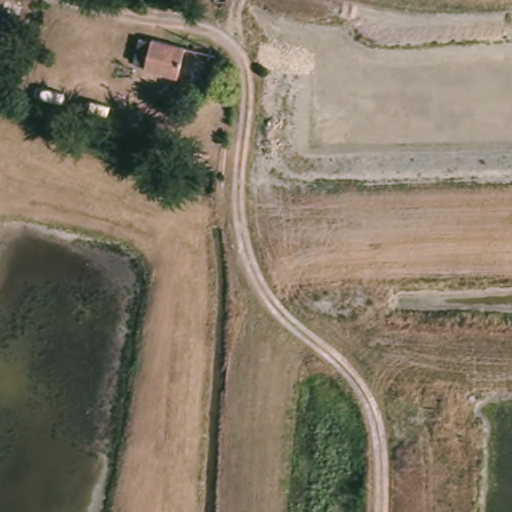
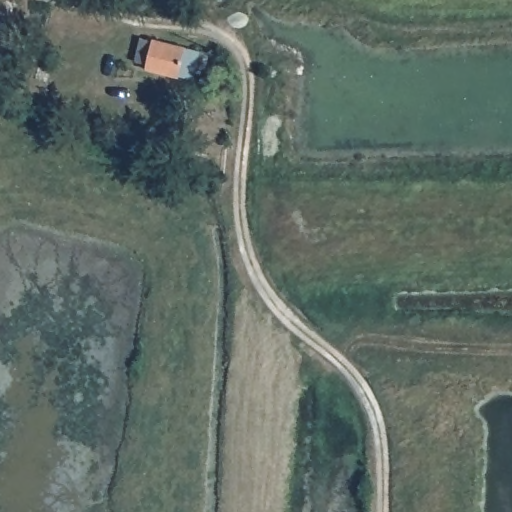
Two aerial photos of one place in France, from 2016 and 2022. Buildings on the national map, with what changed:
unchanged [(204,85),(143,67),(151,39),(213,58),(204,85)]
unchanged [(25,84),(14,79),(22,59),(34,65),(25,84)]
unchanged [(58,101),(31,92),(35,81),(61,90),(58,101)]

